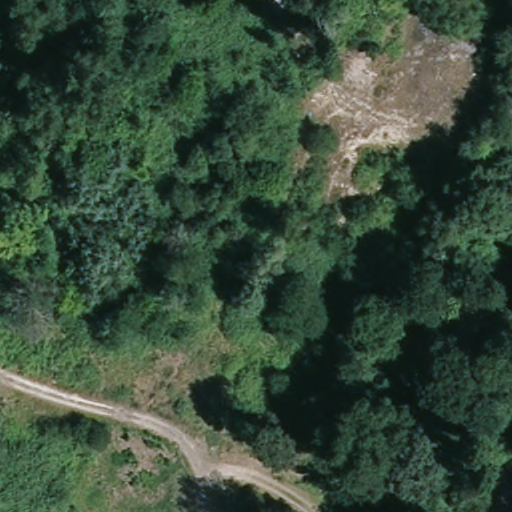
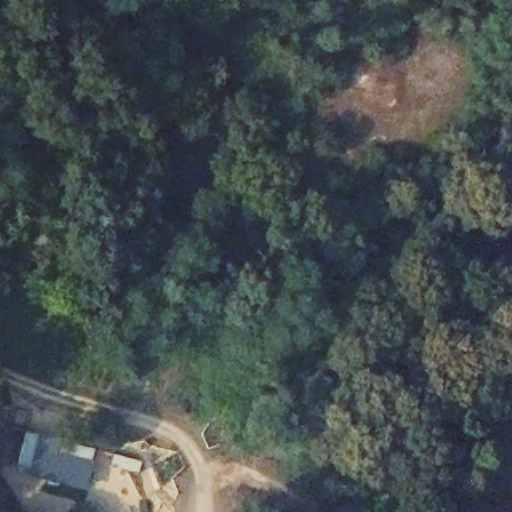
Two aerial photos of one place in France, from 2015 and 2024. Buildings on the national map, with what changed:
new [(21,467),(31,431),(95,447),(85,489),(28,475),(30,469),(21,467)]

